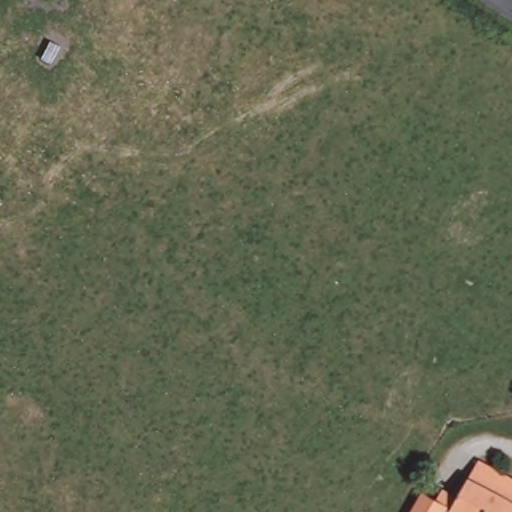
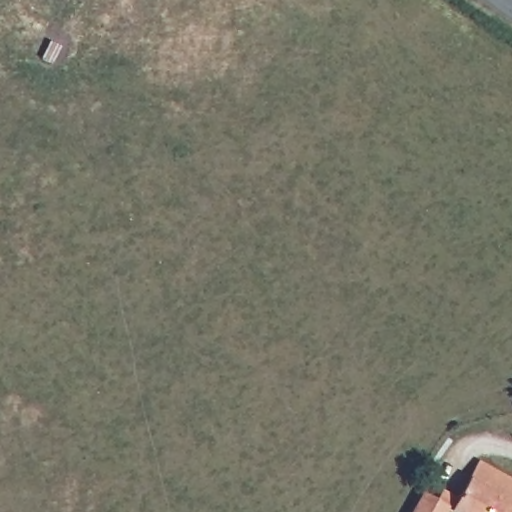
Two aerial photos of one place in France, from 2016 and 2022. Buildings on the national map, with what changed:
unchanged [(512,512),(424,512),(429,502),(439,508),(449,490),(464,497),(482,465),(512,479),(512,512)]

